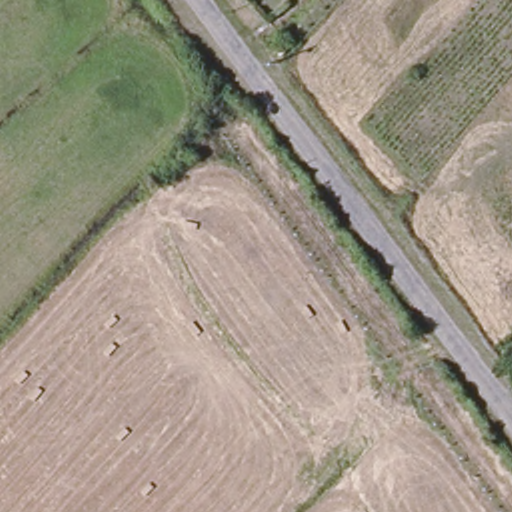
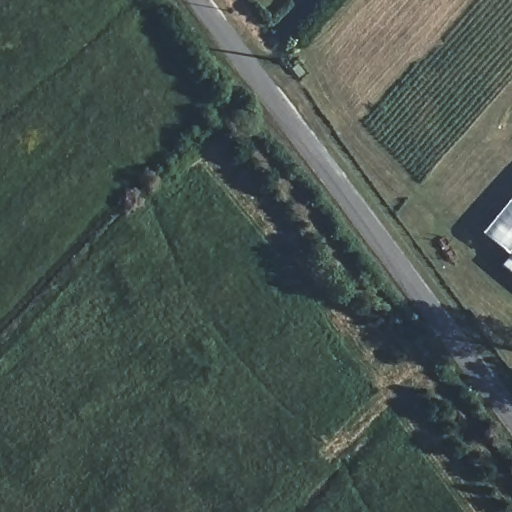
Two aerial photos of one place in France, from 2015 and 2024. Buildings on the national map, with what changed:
new [(512,195),(512,259),(481,232),(512,195)]

